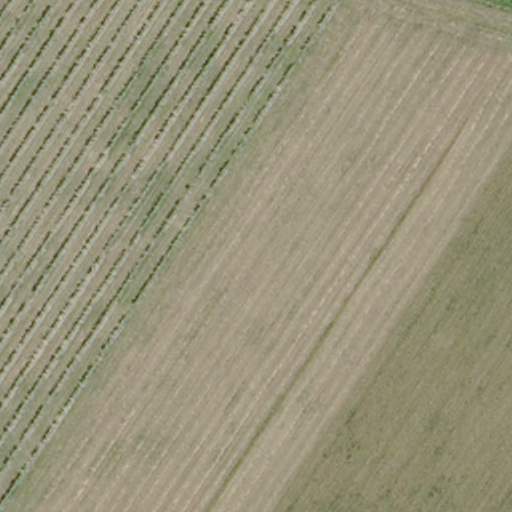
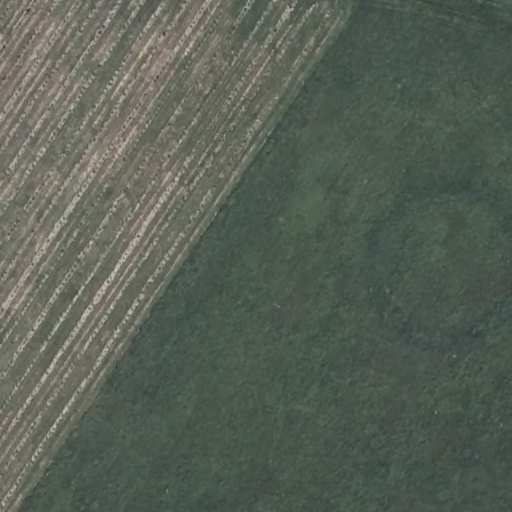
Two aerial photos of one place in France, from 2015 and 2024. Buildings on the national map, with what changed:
[]

